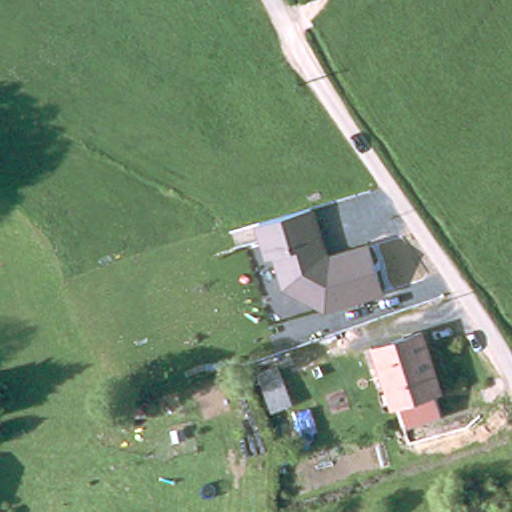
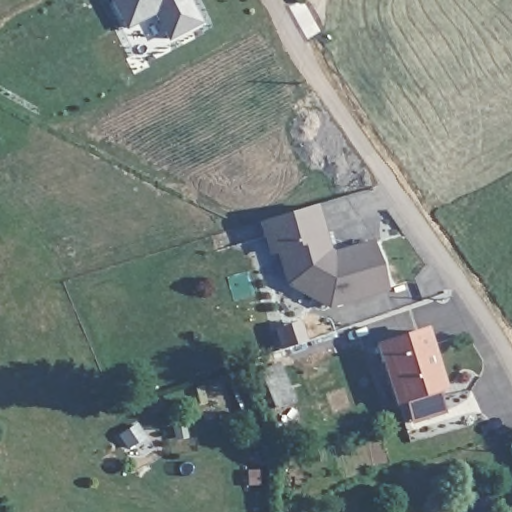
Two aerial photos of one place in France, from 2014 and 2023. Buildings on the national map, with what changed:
new [(110,0),(191,0),(201,22),(168,40),(153,14),(124,29),(110,0)]
unchanged [(329,249),(334,252),(373,240),(387,291),(326,308),(286,286),(275,254),(268,256),(257,222),(315,204),(329,249)]
unchanged [(383,364),(378,347),(424,333),(441,392),(402,403),(394,406),(383,364)]
unchanged [(286,382),(297,415),(278,422),(266,389),(286,382)]

